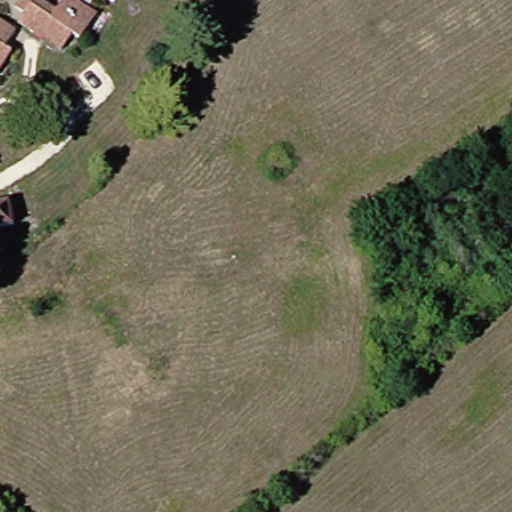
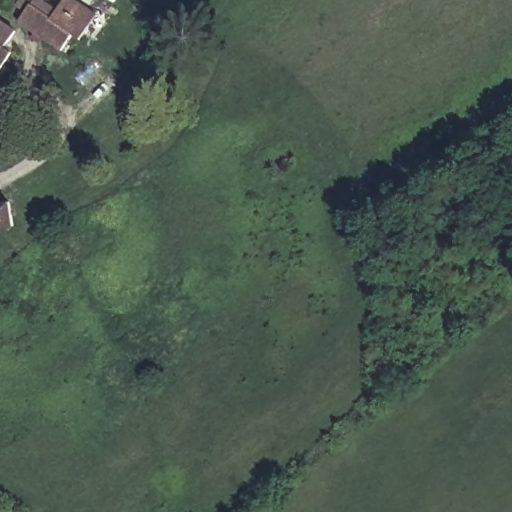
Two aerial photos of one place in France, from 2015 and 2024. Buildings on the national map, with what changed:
unchanged [(47,12),(56,0),(64,0),(88,15),(72,40),(64,35),(53,49),(13,22),(18,14),(8,8),(13,0),(29,0),(28,2),(47,12)]
unchanged [(0,48),(0,28),(10,35),(0,48)]
unchanged [(2,55),(2,64),(0,68),(0,53),(2,55)]
unchanged [(0,232),(0,207),(4,206),(6,231),(0,232)]

